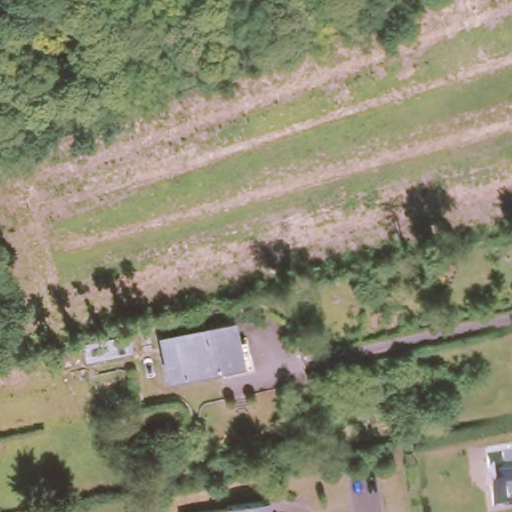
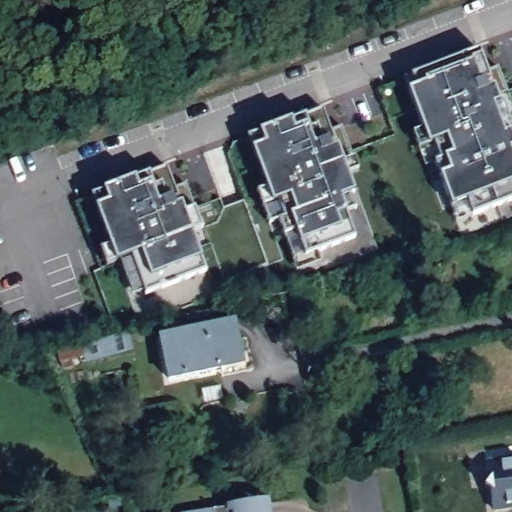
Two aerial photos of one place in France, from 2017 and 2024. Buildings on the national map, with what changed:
new [(480,50),(490,70),(499,66),(512,102),(512,220),(507,222),(503,217),(463,232),(452,205),(442,209),(412,130),(422,127),(403,76),(480,50)]
new [(325,108),(333,129),(343,125),(360,170),(353,174),(378,246),(353,255),(356,260),(344,264),(342,260),(325,266),(322,262),(298,272),(283,232),(274,235),(257,189),(265,185),(247,135),(325,108)]
new [(166,167),(175,188),(185,184),(209,246),(202,250),(216,291),(193,300),(193,303),(182,308),(180,305),(162,310),(160,307),(136,317),(116,260),(108,264),(100,247),(110,242),(92,194),(166,167)]
unchanged [(232,317),(241,358),(168,374),(160,333),(232,317)]
unchanged [(86,363),(81,343),(127,332),(132,351),(86,363)]
unchanged [(512,460),(512,510),(490,512),(484,463),(512,460)]
unchanged [(225,505),(261,499),(262,502),(270,500),(271,512),(190,512),(226,507),(225,505)]

